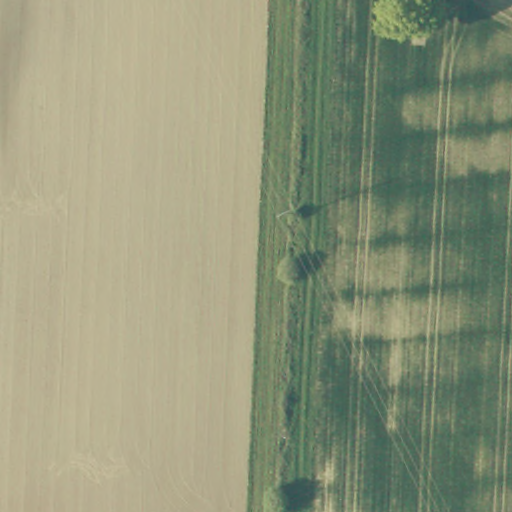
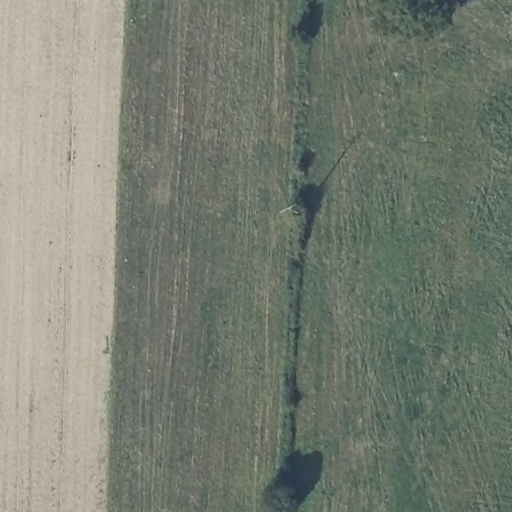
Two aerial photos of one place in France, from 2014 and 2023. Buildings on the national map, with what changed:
[]

